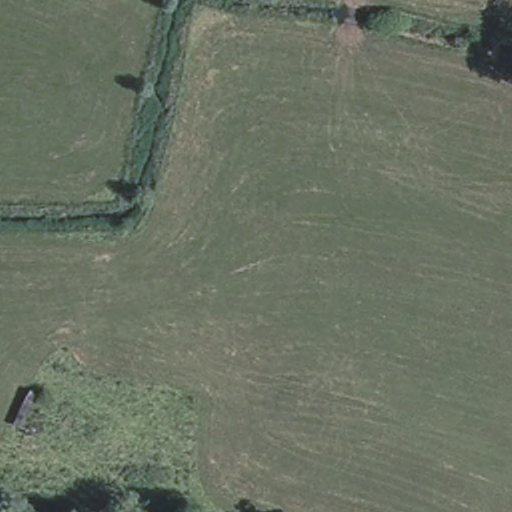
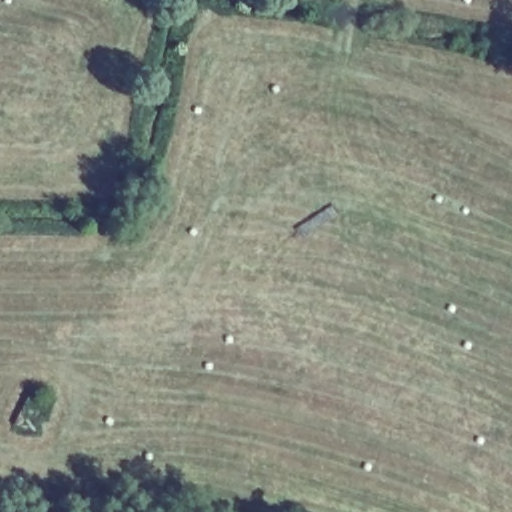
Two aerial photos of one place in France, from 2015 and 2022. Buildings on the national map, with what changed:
unchanged [(57,400),(42,433),(18,422),(32,390),(57,400)]

